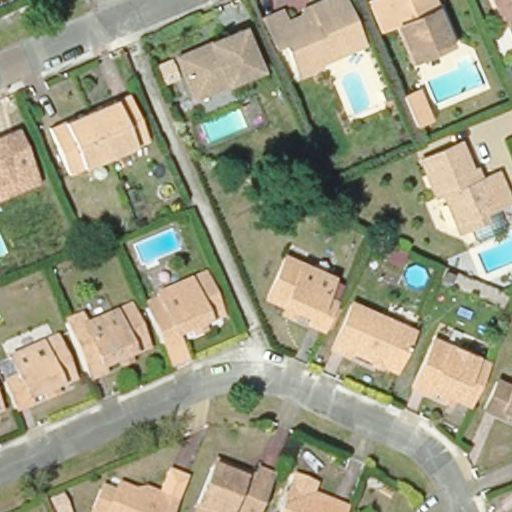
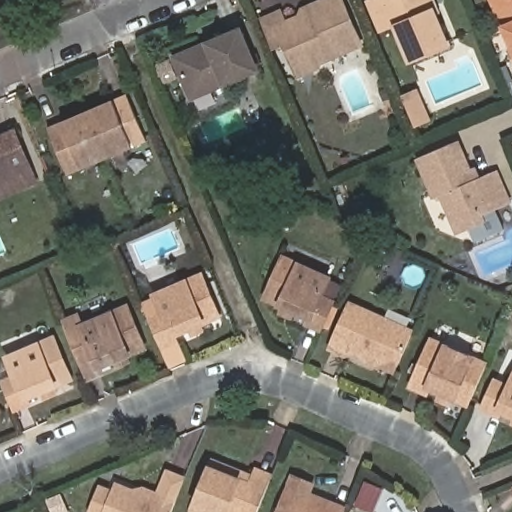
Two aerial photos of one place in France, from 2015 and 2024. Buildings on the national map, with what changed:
unchanged [(291,64),(282,41),(272,46),(260,17),(277,10),(282,21),(297,14),(299,8),(308,4),(317,0),(340,0),(358,42),(315,61),(316,64),(295,72),(291,64)]
unchanged [(393,28),(378,33),(367,6),(381,0),(432,0),(438,15),(431,17),(445,49),(407,64),(393,28)]
unchanged [(512,0),(512,3),(493,11),(489,0),(512,0)]
unchanged [(512,55),(493,11),(512,3),(512,55)]
unchanged [(251,66),(187,93),(170,55),(196,43),(203,40),(234,27),(251,66)]
unchanged [(143,138),(102,155),(64,171),(44,125),(75,111),(83,109),(93,104),(122,91),(143,138)]
unchanged [(16,185),(0,191),(0,131),(9,126),(22,157),(32,178),(16,185)]
unchanged [(469,236),(463,222),(453,226),(437,188),(430,190),(415,155),(454,139),(466,166),(470,165),(475,176),(492,169),(503,197),(488,203),(497,225),(469,236)]
unchanged [(279,306),(281,300),(263,292),(280,253),(325,273),(318,292),(331,298),(319,325),(305,318),(308,312),(290,304),(287,310),(279,306)]
unchanged [(187,328),(184,322),(167,330),(169,334),(154,341),(143,315),(157,309),(149,290),(195,270),(213,310),(193,319),(195,323),(187,328)]
unchanged [(113,359),(110,354),(93,361),(94,366),(81,372),(69,346),(84,341),(75,321),(120,302),(138,342),(118,350),(120,355),(113,359)]
unchanged [(366,364),(367,360),(343,349),(341,354),(326,348),(345,305),(407,332),(391,370),(375,363),(373,367),(366,364)]
unchanged [(39,391),(37,386),(19,393),(21,398),(7,405),(0,387),(0,376),(10,372),(1,353),(46,334),(65,374),(46,382),(48,387),(39,391)]
unchanged [(467,403),(427,385),(425,389),(411,383),(431,339),(485,364),(467,403)]
unchanged [(493,409),(478,403),(490,376),(504,382),(512,366),(512,410),(495,403),(493,409)]
unchanged [(512,411),(512,418),(509,417),(512,411)]
unchanged [(253,512),(200,512),(189,508),(211,456),(240,468),(238,474),(250,479),(255,465),(270,471),(253,512)]
unchanged [(304,486),(298,501),(303,503),(305,497),(338,510),(337,512),(272,512),(280,493),(286,478),(304,486)]
unchanged [(115,483),(138,493),(139,488),(173,502),(169,512),(103,512),(115,483)]
unchanged [(512,485),(512,489),(510,486),(512,485)]
unchanged [(45,500),(58,494),(66,512),(50,512),(45,500)]

